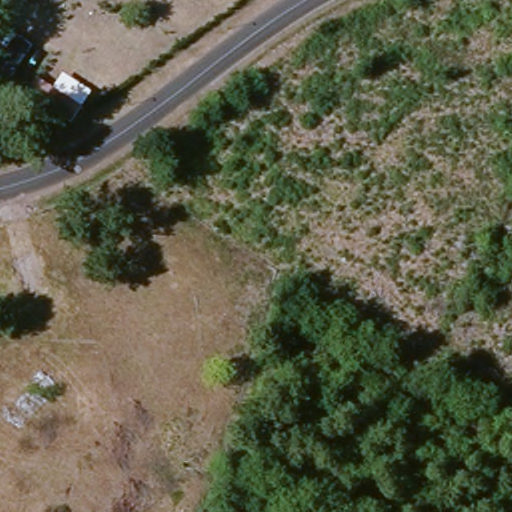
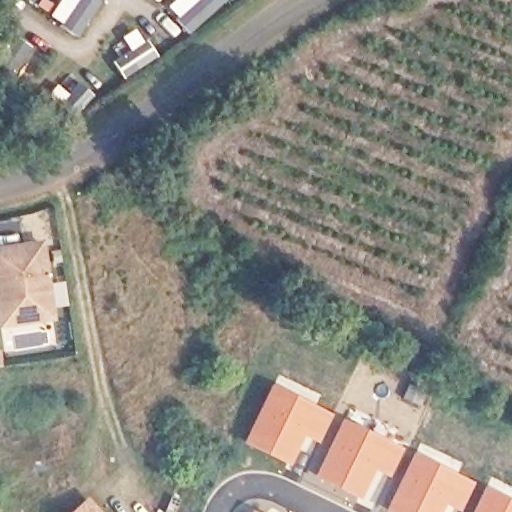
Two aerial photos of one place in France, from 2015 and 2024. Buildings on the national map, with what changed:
unchanged [(52,309),(17,314),(12,282),(0,284),(0,250),(42,244),(52,309)]
new [(17,314),(52,309),(54,319),(2,326),(0,312),(0,284),(12,282),(17,314)]
new [(273,381),(331,414),(317,442),(306,436),(290,467),(242,442),(273,381)]
new [(343,418),(403,449),(389,476),(377,470),(362,500),(314,477),(343,418)]
new [(416,450),(473,483),(459,512),(447,506),(443,512),(388,512),(386,511),(416,450)]
new [(487,483),(512,497),(512,512),(472,512),(487,483)]
new [(87,500),(98,512),(73,512),(87,500)]
new [(252,509),(258,512),(251,512),(252,509)]

